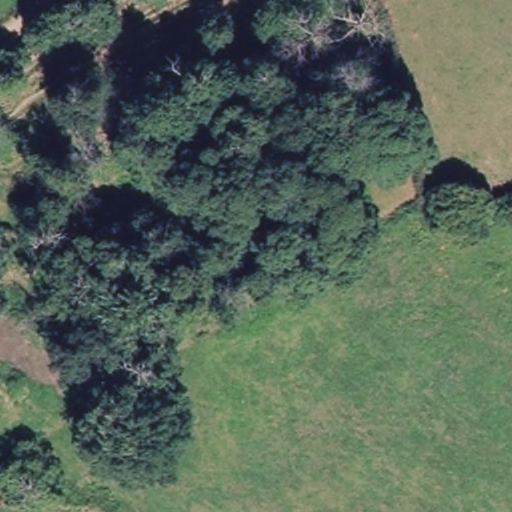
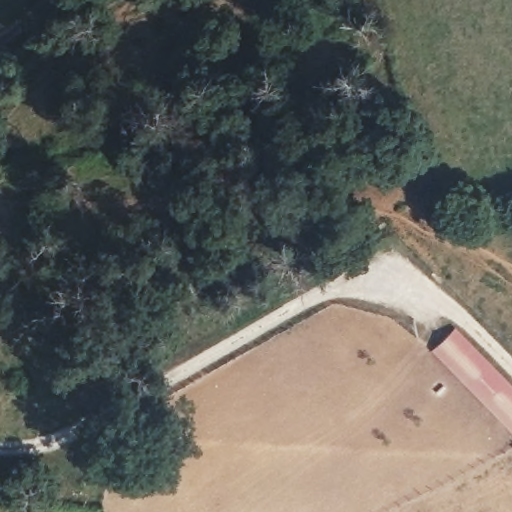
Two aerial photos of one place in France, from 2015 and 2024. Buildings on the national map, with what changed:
new [(455,324),(512,384),(512,430),(430,347),(455,324)]

